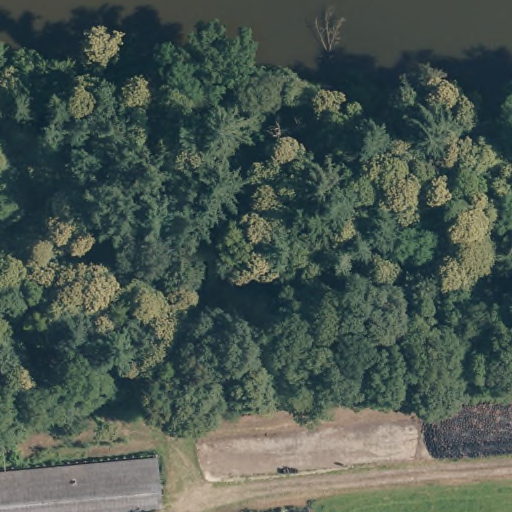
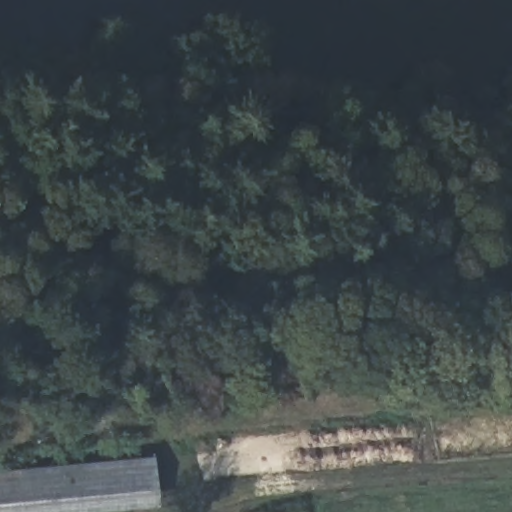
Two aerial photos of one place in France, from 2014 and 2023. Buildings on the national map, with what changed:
unchanged [(0,512),(0,468),(161,452),(166,499),(37,512),(0,512)]

